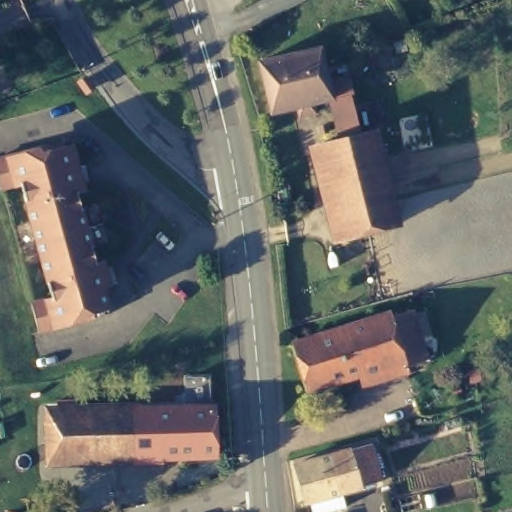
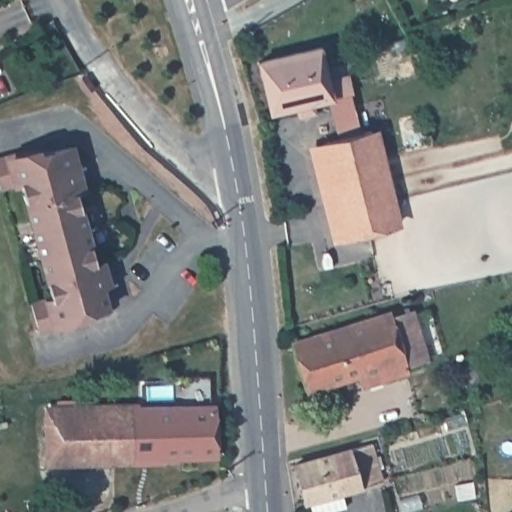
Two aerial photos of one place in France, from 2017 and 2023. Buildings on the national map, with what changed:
unchanged [(312,53),(322,101),(304,104),(306,115),(289,119),(286,108),(261,113),(251,65),(312,53)]
unchanged [(89,84),(80,91),(66,71),(75,68),(89,84)]
unchanged [(344,97),(354,140),(331,145),(322,101),(344,97)]
unchanged [(354,140),(361,139),(384,229),(333,242),(311,149),(331,145),(354,140)]
unchanged [(112,263),(116,281),(106,284),(101,285),(109,312),(43,332),(34,301),(54,296),(23,183),(6,188),(5,184),(0,165),(0,156),(60,140),(68,167),(74,165),(83,163),(84,166),(88,179),(83,182),(84,188),(80,189),(74,190),(94,260),(99,260),(104,259),(106,265),(112,263)]
unchanged [(404,364),(309,388),(296,338),(393,316),(404,364)]
unchanged [(215,403),(218,455),(48,460),(47,410),(215,403)]
unchanged [(388,478),(319,496),(308,462),(378,442),(388,478)]

